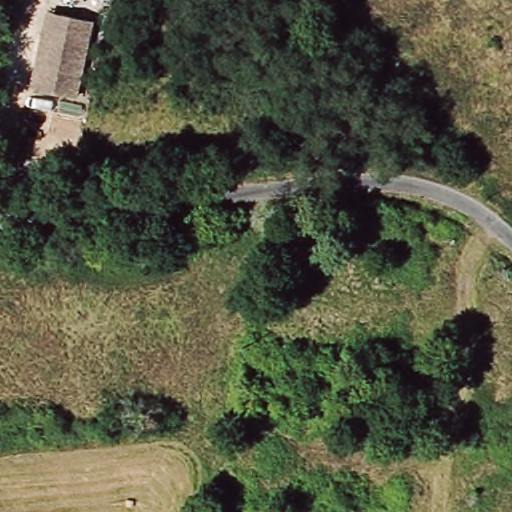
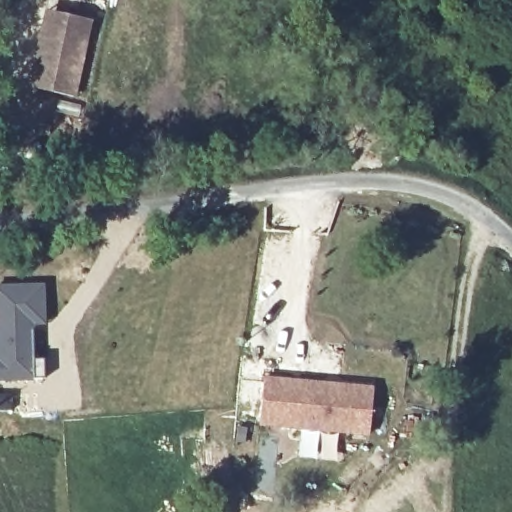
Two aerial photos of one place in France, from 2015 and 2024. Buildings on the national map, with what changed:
unchanged [(33,93),(44,32),(47,19),(90,26),(87,40),(76,101),(33,93)]
new [(43,288),(43,326),(32,326),(32,362),(42,361),(43,381),(0,381),(0,288),(43,288)]
new [(324,378),(339,379),(338,387),(371,390),(368,435),(278,428),(258,427),(262,382),(282,383),(323,386),(324,378)]

